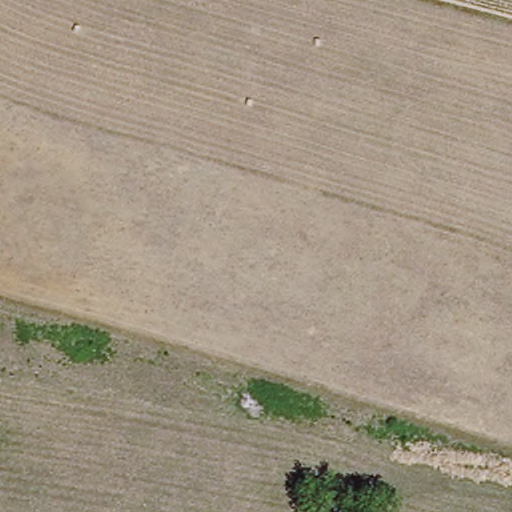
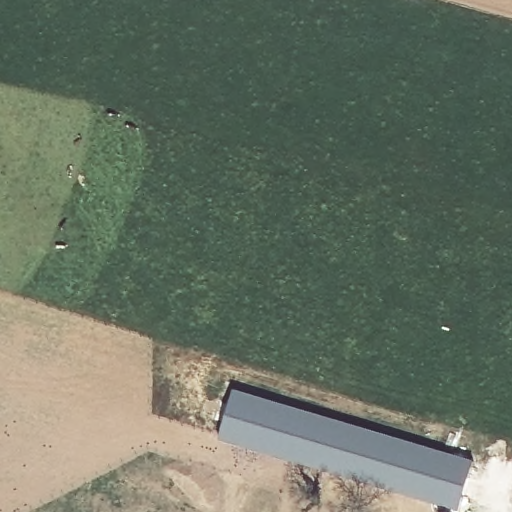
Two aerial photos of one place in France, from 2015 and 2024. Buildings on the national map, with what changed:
new [(232,388),(436,447),(474,460),(458,511),(400,494),(350,481),(217,440),(232,388)]

